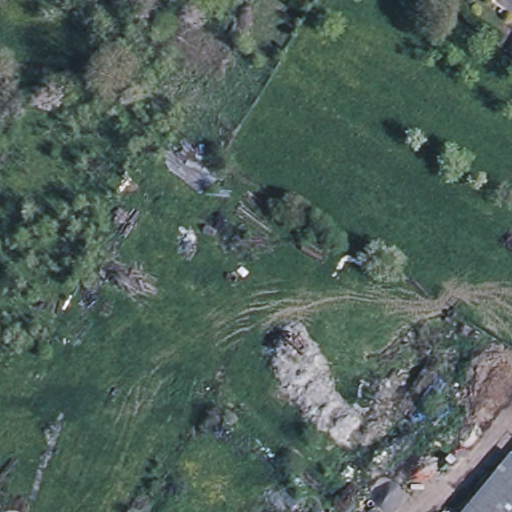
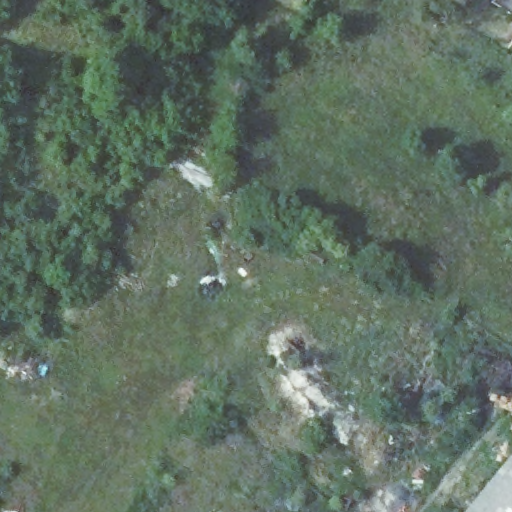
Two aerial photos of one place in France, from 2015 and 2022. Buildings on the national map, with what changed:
unchanged [(465,512),(512,457),(512,512),(465,512)]

